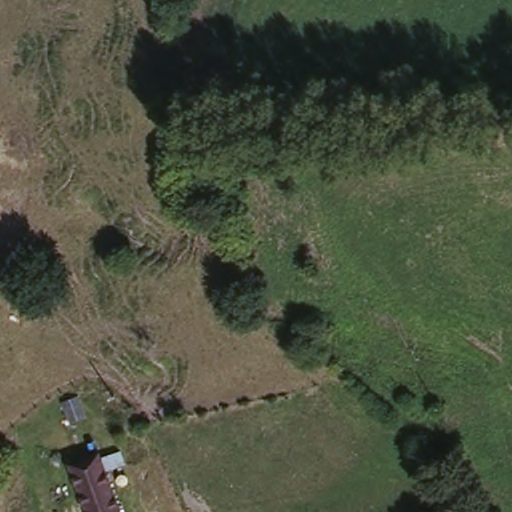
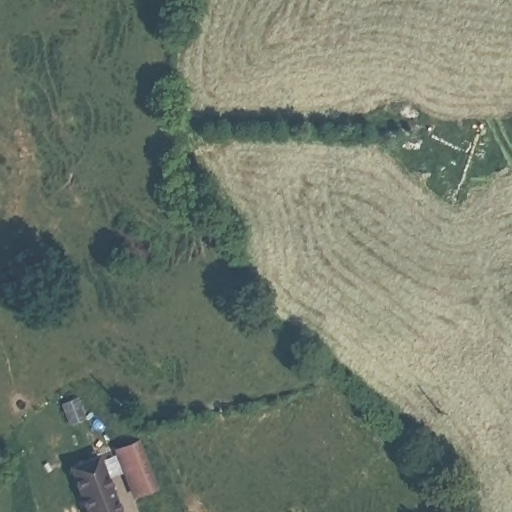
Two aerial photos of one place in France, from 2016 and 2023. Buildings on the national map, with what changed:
unchanged [(123,512),(81,512),(60,461),(100,448),(123,512)]

